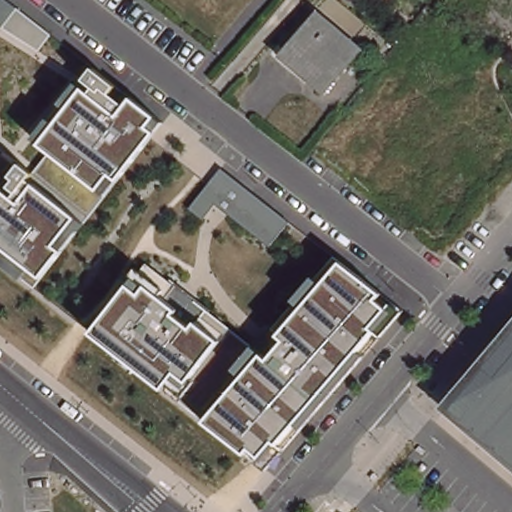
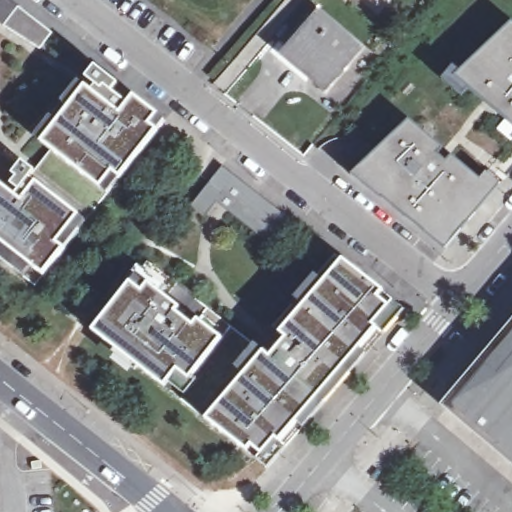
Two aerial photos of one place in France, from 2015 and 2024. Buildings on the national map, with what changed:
unchanged [(0,24),(0,0),(10,0),(53,32),(40,48),(0,24)]
unchanged [(358,55),(322,99),(308,86),(311,81),(285,59),(317,21),(358,55)]
new [(512,125),(456,77),(512,25),(512,125)]
unchanged [(0,242),(0,185),(23,202),(26,195),(13,185),(25,169),(33,176),(51,150),(40,141),(95,71),(120,87),(116,92),(131,102),(135,98),(167,122),(112,195),(63,254),(45,277),(0,242)]
new [(500,185),(445,250),(350,175),(408,122),(441,150),(436,155),(446,165),(452,159),(480,181),(485,174),(500,185)]
new [(256,232),(231,212),(218,202),(206,217),(191,206),(218,172),(223,166),(251,188),(276,207),(256,232)]
unchanged [(385,293),(380,300),(390,309),(374,327),(377,331),(281,443),(275,441),(262,457),(251,448),(247,452),(208,421),(166,388),(95,332),(131,282),(145,293),(150,286),(181,310),(178,315),(195,328),(200,322),(222,339),(262,351),(270,358),(286,340),(281,335),(343,263),(385,293)]
unchanged [(446,405),(481,364),(478,361),(512,322),(512,462),(470,427),(471,425),(446,405)]

